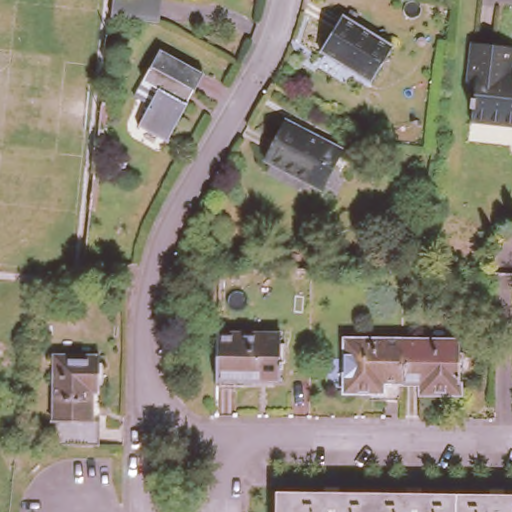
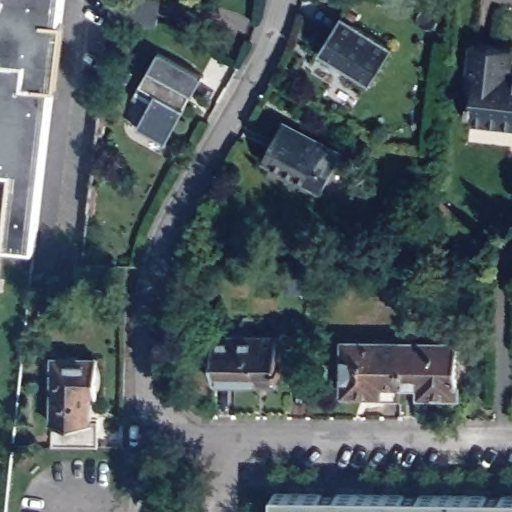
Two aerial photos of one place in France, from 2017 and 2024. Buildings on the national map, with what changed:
new [(38,243),(6,239),(0,239),(0,0),(66,0),(38,243)]
unchanged [(159,24),(110,18),(112,0),(162,0),(159,24)]
unchanged [(323,52),(345,17),(397,48),(375,84),(323,52)]
unchanged [(512,127),(470,122),(472,111),(469,110),(471,99),(473,99),(474,91),(464,90),(471,43),(512,48),(510,70),(512,71),(512,127)]
unchanged [(140,124),(158,89),(143,81),(159,50),(205,75),(171,140),(140,124)]
unchanged [(266,160),(286,123),(344,155),(324,191),(266,160)]
unchanged [(284,364),(288,364),(288,378),(284,378),(284,383),(248,382),(248,388),(221,389),(221,334),(284,335),(284,364)]
unchanged [(384,389),(348,389),(349,336),(406,337),(406,378),(406,384),(406,396),(385,397),(384,389)]
unchanged [(462,339),(462,390),(425,389),(425,378),(406,378),(406,337),(462,339)]
unchanged [(98,388),(90,389),(90,420),(97,419),(98,434),(53,434),(53,353),(98,353),(98,388)]
unchanged [(512,490),(512,512),(274,512),(274,487),(512,490)]

